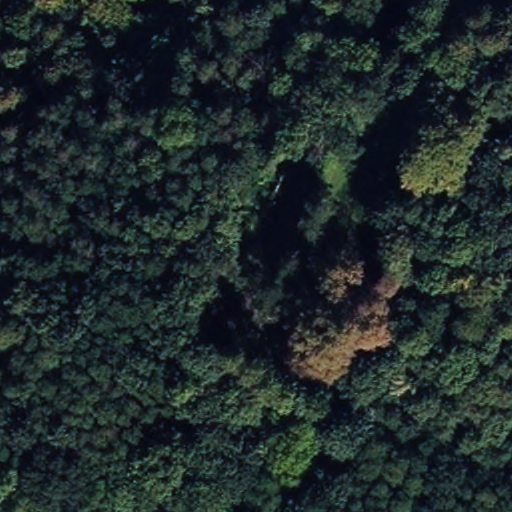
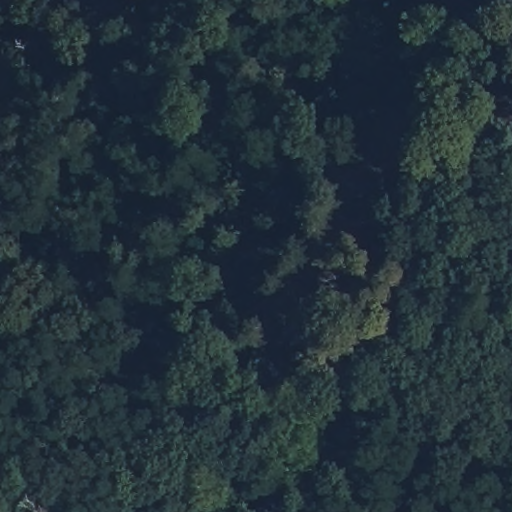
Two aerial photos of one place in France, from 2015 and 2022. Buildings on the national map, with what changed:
unchanged [(315,51),(322,57),(325,66),(315,84),(312,83),(305,81),(298,77),(293,70),(292,62),(300,54),(308,50),(315,51)]

